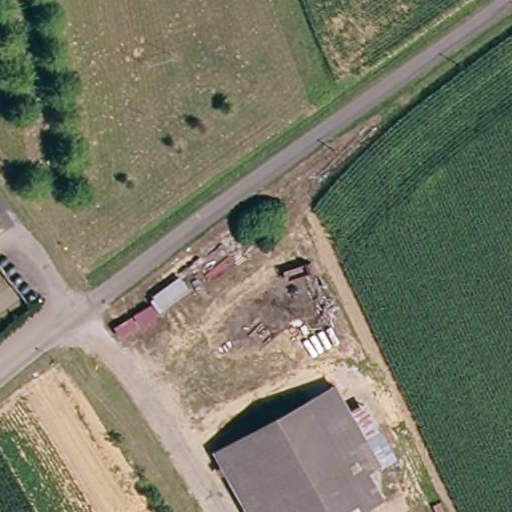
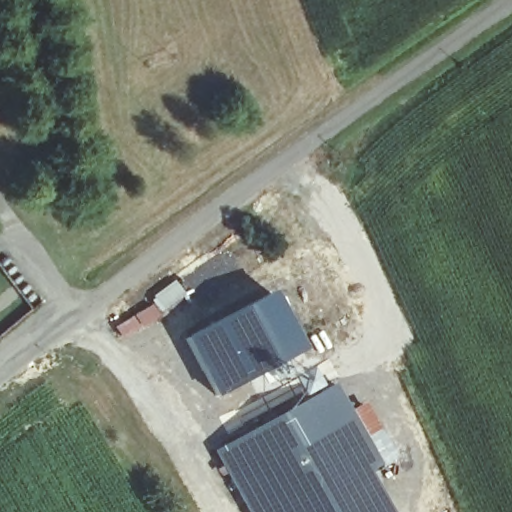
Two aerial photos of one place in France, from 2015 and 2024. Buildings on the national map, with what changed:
new [(150,297),(174,280),(186,297),(161,315),(122,339),(115,326),(153,303),(150,297)]
new [(217,319),(272,292),(303,350),(273,368),(214,397),(183,338),(217,319)]
unchanged [(372,469),(383,500),(362,512),(247,512),(214,455),(336,386),(384,463),(372,469)]

